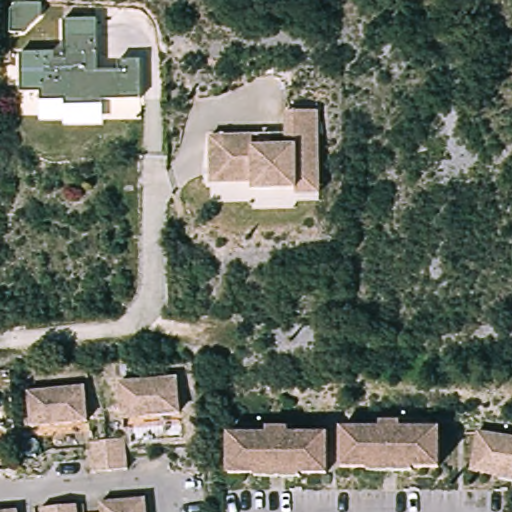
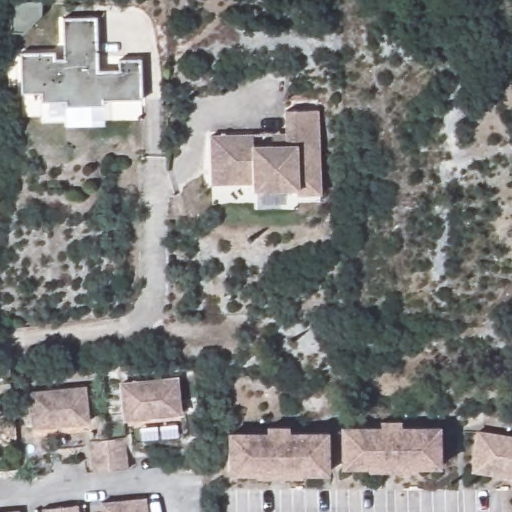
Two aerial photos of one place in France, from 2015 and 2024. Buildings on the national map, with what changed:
unchanged [(54,52),(53,58),(63,59),(62,19),(96,18),(97,71),(118,71),(118,60),(140,59),(141,100),(103,100),(103,106),(63,107),(64,101),(39,102),(40,93),(20,94),(20,53),(54,52)]
unchanged [(290,129),(290,106),(322,105),(325,190),(301,190),(301,185),(258,186),(257,179),(215,180),(215,131),(290,129)]
unchanged [(120,384),(176,379),(179,413),(123,418),(120,384)]
unchanged [(32,422),(28,388),(85,382),(88,416),(32,422)]
unchanged [(0,410),(0,404),(3,407),(0,410)]
unchanged [(342,423),(383,423),(382,417),(403,417),(403,423),(442,423),(442,464),(420,464),(420,469),(361,467),(361,464),(341,464),(342,423)]
unchanged [(230,429),(269,428),(269,423),(291,423),(290,429),(330,429),(330,471),(311,471),(311,474),(256,474),(256,471),(230,471),(230,429)]
unchanged [(474,427),(512,434),(512,478),(489,473),(489,471),(468,467),(474,427)]
unchanged [(90,442),(108,441),(125,439),(126,458),(128,470),(110,472),(93,474),(91,460),(90,442)]
unchanged [(143,512),(99,512),(98,501),(141,497),(143,512)]
unchanged [(76,512),(44,512),(43,501),(59,500),(75,499),(76,512)]
unchanged [(19,512),(0,512),(18,510),(19,512)]

